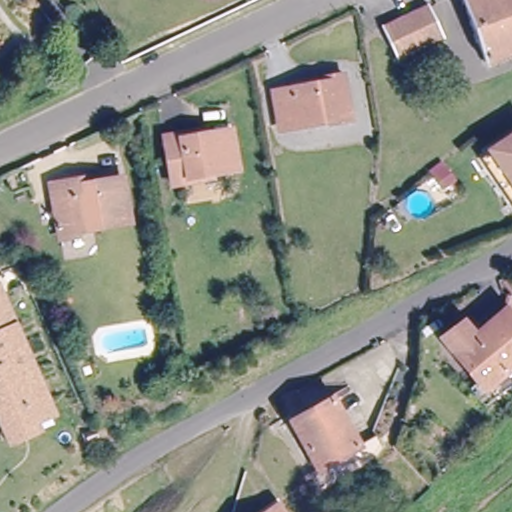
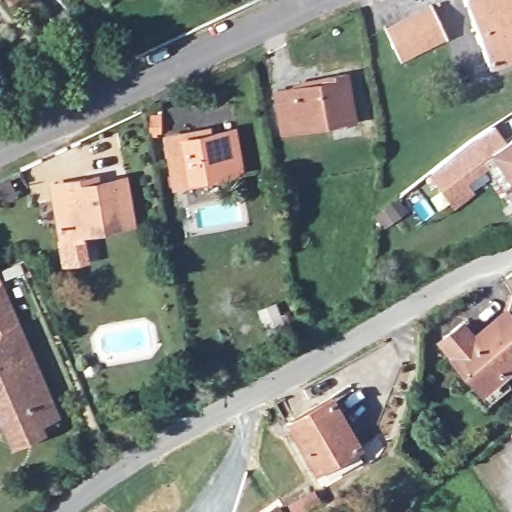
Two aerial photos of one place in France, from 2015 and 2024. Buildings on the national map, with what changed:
unchanged [(512,47),(491,55),(470,0),(512,0),(512,47)]
unchanged [(400,58),(387,28),(433,6),(447,36),(400,58)]
unchanged [(323,78),(347,73),(355,120),(331,125),(331,122),(283,130),(276,90),(324,82),(323,78)]
new [(494,122),(504,139),(488,149),(496,161),(466,180),(473,192),(453,208),(426,171),(494,122)]
unchanged [(208,129),(210,135),(233,131),(240,167),(216,172),(217,177),(176,184),(167,137),(208,129)]
unchanged [(512,133),(512,185),(496,161),(488,149),(504,139),(512,133)]
unchanged [(91,177),(93,184),(120,179),(128,222),(57,234),(48,185),(91,177)]
unchanged [(0,331),(0,282),(2,281),(32,351),(26,354),(13,325),(0,331)]
unchanged [(451,352),(449,352),(438,340),(462,321),(473,334),(512,303),(512,367),(483,391),(451,352)]
unchanged [(5,415),(0,404),(0,331),(13,325),(26,354),(32,351),(51,395),(57,408),(38,416),(41,422),(13,434),(5,415)]
unchanged [(312,461),(317,458),(291,412),(332,388),(358,435),(375,426),(381,437),(375,446),(320,476),(312,461)]
unchanged [(264,512),(275,504),(281,512),(264,512)]

